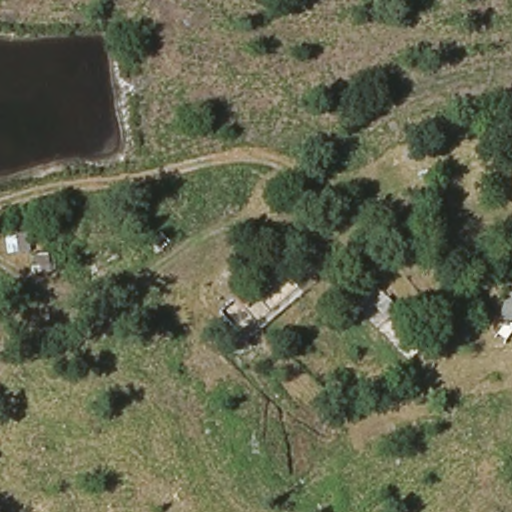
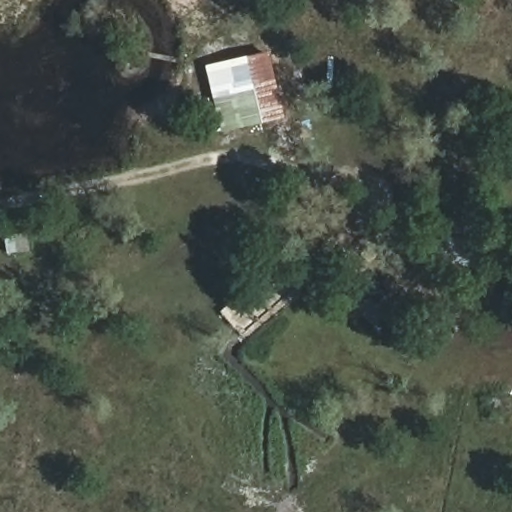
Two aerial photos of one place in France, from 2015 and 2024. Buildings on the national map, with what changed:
new [(221,132),(205,64),(267,50),(284,116),(221,132)]
unchanged [(376,324),(357,303),(374,287),(394,310),(376,324)]

